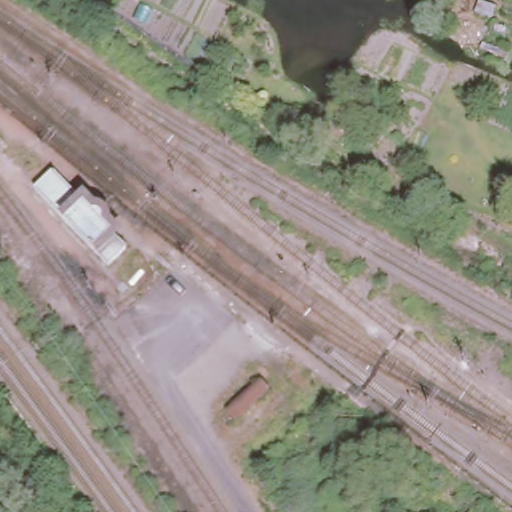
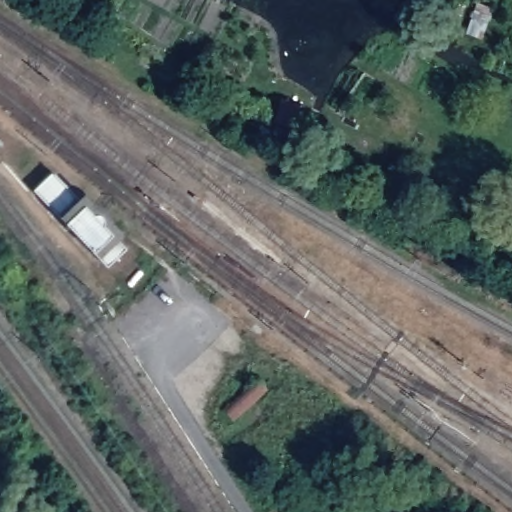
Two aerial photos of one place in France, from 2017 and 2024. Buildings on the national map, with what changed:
unchanged [(100,255),(26,177),(47,157),(120,236),(100,255)]

